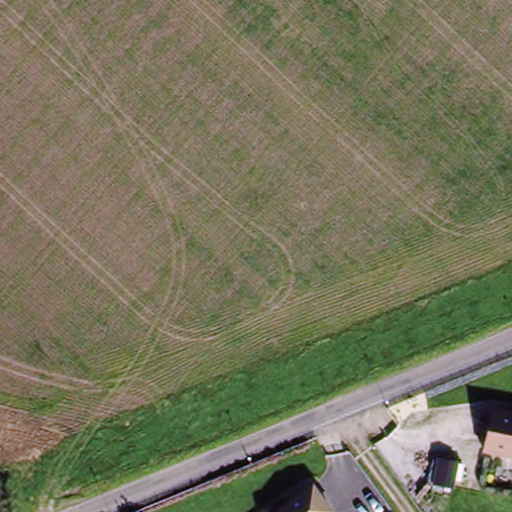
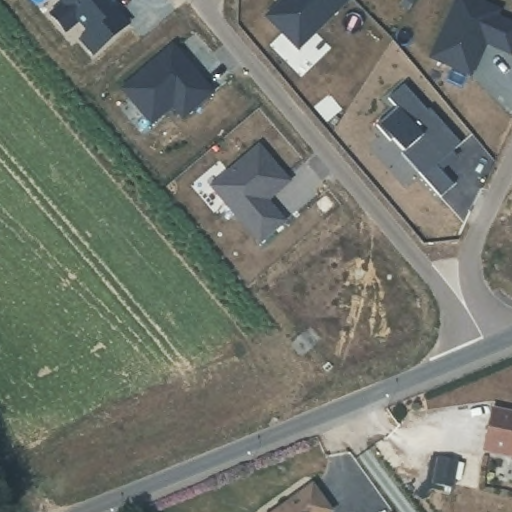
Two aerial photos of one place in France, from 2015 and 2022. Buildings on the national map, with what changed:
new [(299,52),(268,20),(288,0),(353,0),(353,1),(299,52)]
new [(474,0),(499,11),(496,17),(512,25),(512,54),(512,55),(495,47),(496,45),(486,41),(470,76),(431,59),(457,0),(474,0)]
new [(215,94),(186,118),(176,106),(154,124),(125,90),(176,47),(215,94)]
new [(396,108),(388,99),(404,85),(427,112),(430,110),(461,146),(436,167),(453,187),(440,200),(401,155),(403,152),(392,140),(389,142),(375,126),(396,108)]
new [(215,188),(262,149),(291,184),(266,205),(273,214),(276,211),(287,224),(262,245),(215,188)]
unchanged [(493,419),(512,421),(512,463),(486,460),(493,419)]
new [(453,487),(434,485),(438,460),(457,462),(453,487)]
unchanged [(314,490),(336,512),(335,512),(288,512),(314,490)]

